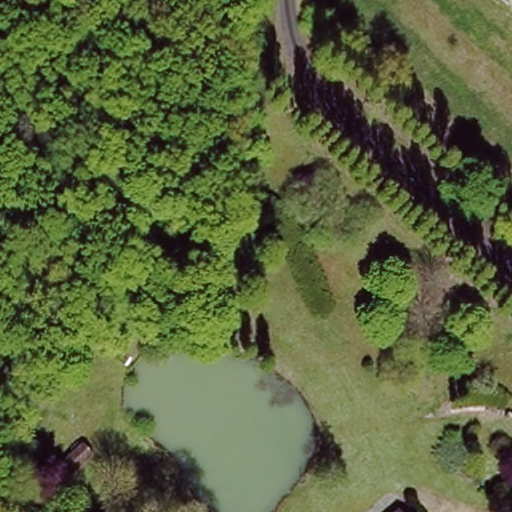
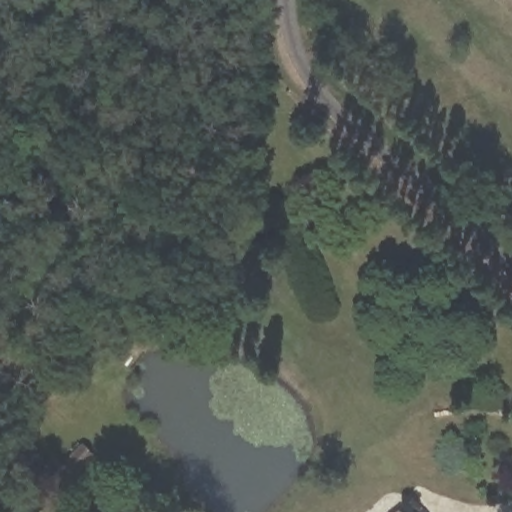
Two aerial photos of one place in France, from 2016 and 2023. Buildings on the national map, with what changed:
unchanged [(82,444),(93,454),(70,475),(60,465),(82,444)]
unchanged [(398,509),(400,512),(395,512),(398,509)]

